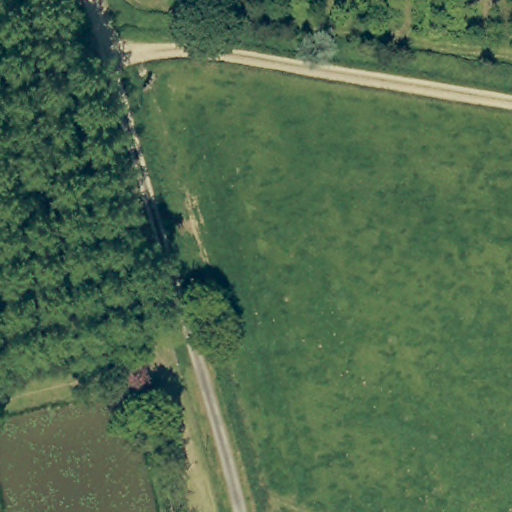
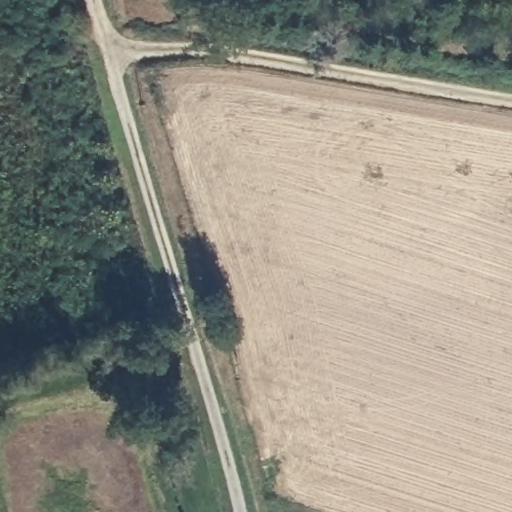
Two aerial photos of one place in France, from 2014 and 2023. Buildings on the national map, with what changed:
[]

